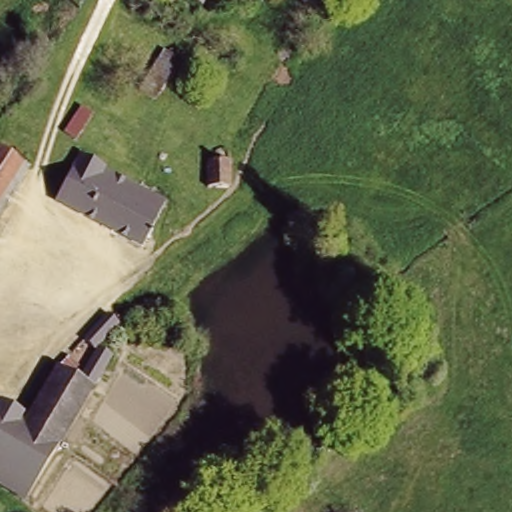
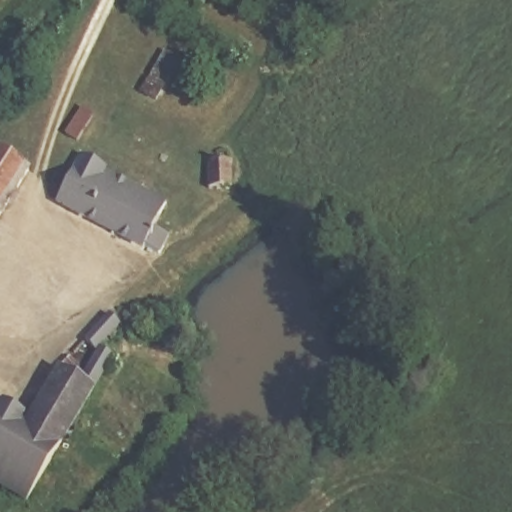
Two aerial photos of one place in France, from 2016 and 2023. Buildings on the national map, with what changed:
unchanged [(206,6),(199,0),(210,0),(206,6)]
unchanged [(167,48),(187,64),(162,96),(140,80),(167,48)]
unchanged [(103,122),(88,142),(70,128),(86,109),(103,122)]
unchanged [(26,165),(0,207),(0,147),(26,165)]
unchanged [(82,163),(90,151),(172,206),(142,254),(58,197),(70,180),(65,177),(77,159),(82,163)]
unchanged [(231,159),(233,183),(215,185),(212,161),(231,159)]
unchanged [(110,315),(122,329),(100,351),(85,336),(110,315)]
unchanged [(43,369),(53,356),(62,363),(57,368),(74,380),(98,353),(114,365),(81,416),(25,380),(34,363),(43,369)]
unchanged [(81,416),(60,449),(5,415),(25,380),(81,416)]
unchanged [(5,415),(60,449),(25,503),(0,488),(0,412),(5,415)]

